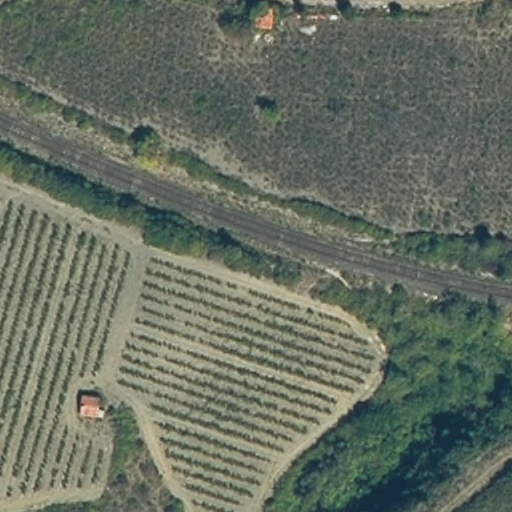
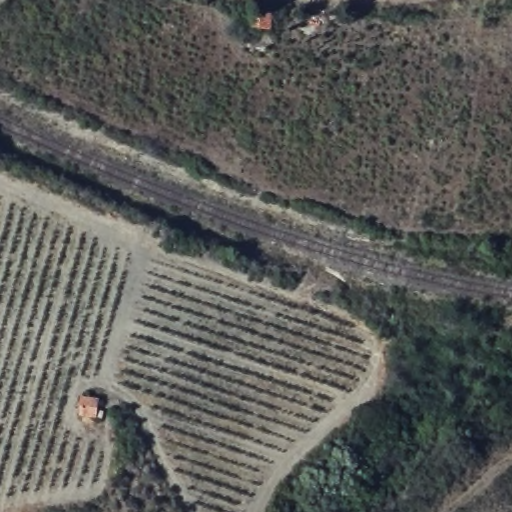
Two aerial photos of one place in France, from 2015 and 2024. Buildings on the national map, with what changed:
unchanged [(110,395),(107,416),(80,412),(83,390),(110,395)]

